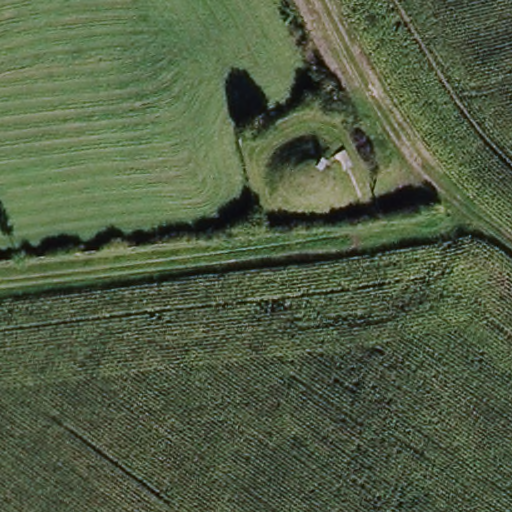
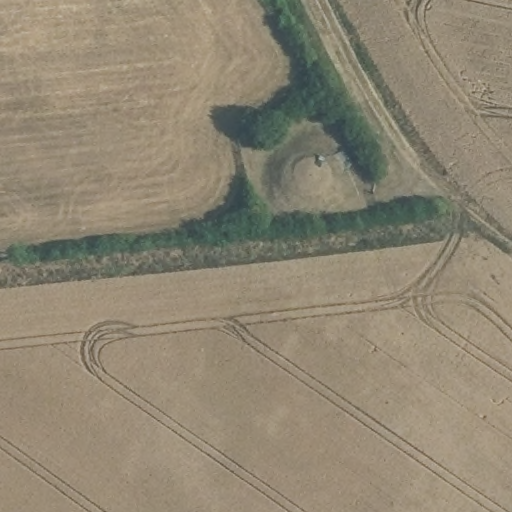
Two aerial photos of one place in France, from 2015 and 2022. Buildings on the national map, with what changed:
[]

